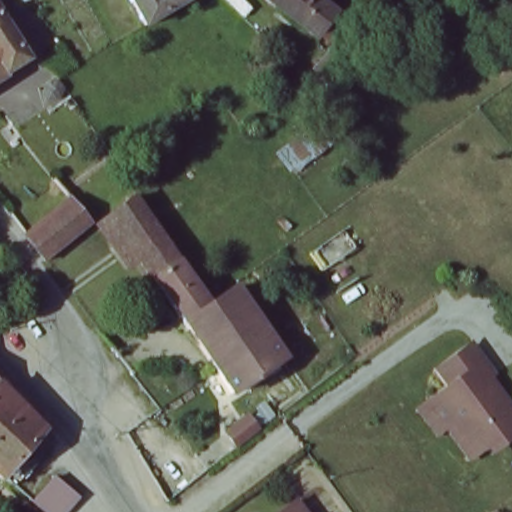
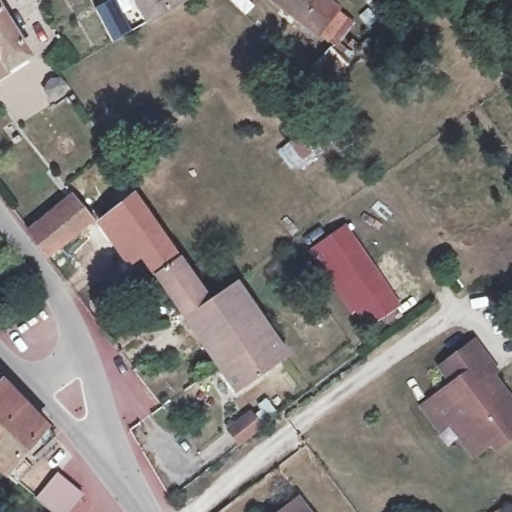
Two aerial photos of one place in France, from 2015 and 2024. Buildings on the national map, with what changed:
unchanged [(139,0),(185,0),(160,14),(151,20),(139,0)]
unchanged [(338,10),(320,34),(274,0),(324,0),(338,10)]
unchanged [(0,13),(5,21),(0,24),(0,13)]
unchanged [(28,58),(0,77),(0,24),(5,21),(28,58)]
unchanged [(336,90),(323,101),(306,80),(319,70),(336,90)]
unchanged [(154,277),(126,236),(114,244),(98,220),(134,192),(180,256),(154,277)]
unchanged [(94,219),(46,255),(29,232),(76,196),(94,219)]
new [(345,225),(401,302),(367,324),(357,311),(352,314),(307,251),(345,225)]
unchanged [(215,365),(154,277),(180,256),(209,296),(211,299),(238,280),(267,328),(215,365)]
unchanged [(267,328),(282,351),(283,353),(231,389),(215,365),(267,328)]
unchanged [(448,423),(439,430),(421,406),(430,400),(452,384),(441,368),(475,344),(489,363),(497,373),(490,378),(512,407),(512,434),(505,439),(500,432),(484,444),(472,453),(448,423)]
unchanged [(9,474),(0,467),(0,380),(22,402),(47,428),(52,434),(13,478),(9,474)]
unchanged [(59,512),(53,507),(41,496),(60,473),(72,483),(85,494),(70,512),(59,512)]
unchanged [(311,512),(275,512),(298,494),(311,512)]

